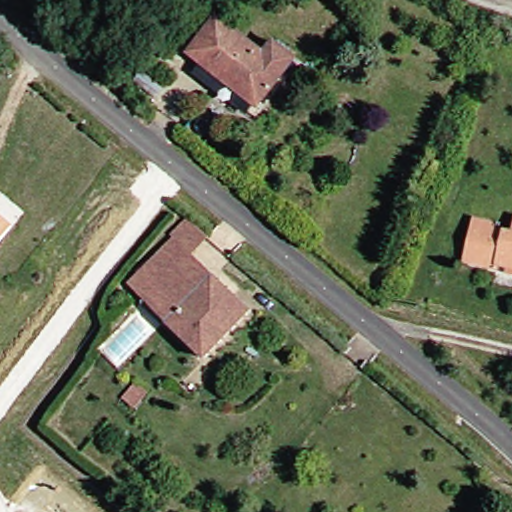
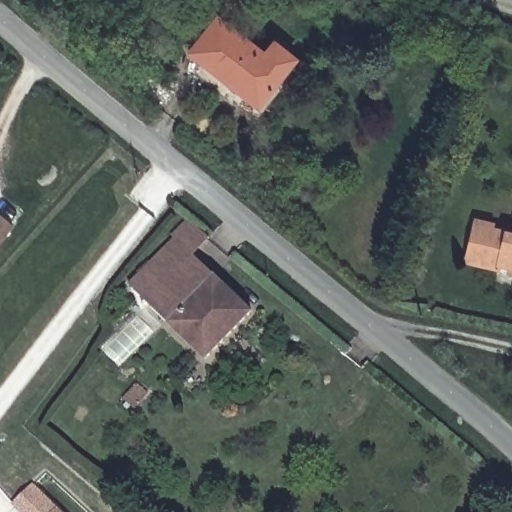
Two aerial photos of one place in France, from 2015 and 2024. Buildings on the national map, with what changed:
unchanged [(264,100),(258,107),(202,63),(190,54),(218,18),(265,55),(274,43),(295,60),(264,100)]
unchanged [(0,243),(0,217),(13,227),(0,243)]
unchanged [(504,268),(494,265),(493,270),(461,262),(470,220),(487,224),(486,228),(509,234),(512,221),(512,275),(503,272),(504,268)]
unchanged [(129,286),(175,238),(191,222),(209,239),(194,255),(193,256),(252,312),(206,360),(129,286)]
unchanged [(131,407),(120,395),(135,381),(146,393),(131,407)]
new [(19,512),(10,503),(32,482),(57,507),(52,512),(19,512)]
new [(52,512),(57,507),(63,512),(52,512)]

